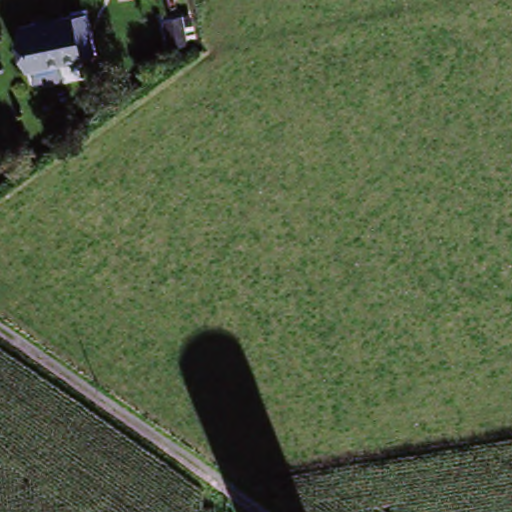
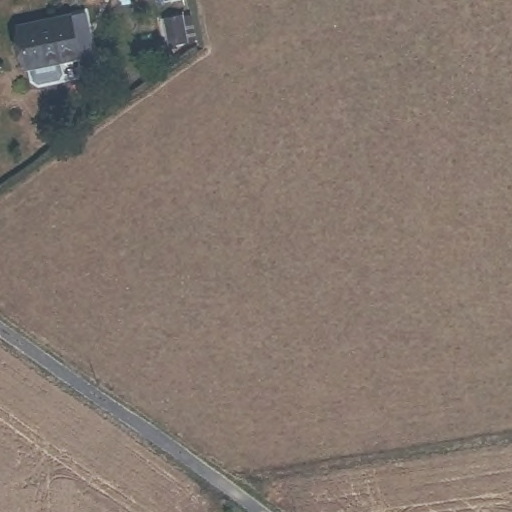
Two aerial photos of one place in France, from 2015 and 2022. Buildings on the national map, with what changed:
unchanged [(83,36),(24,64),(9,35),(69,6),(83,36)]

